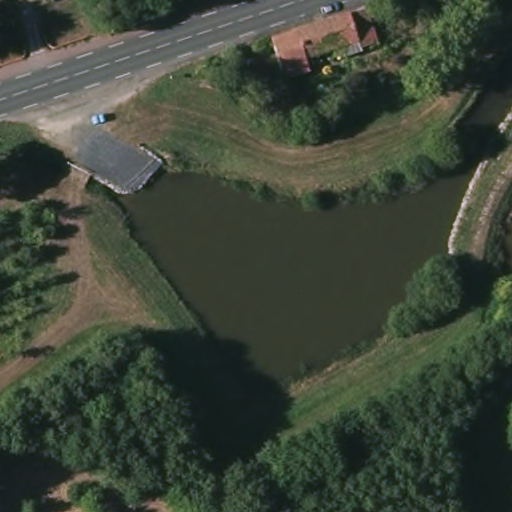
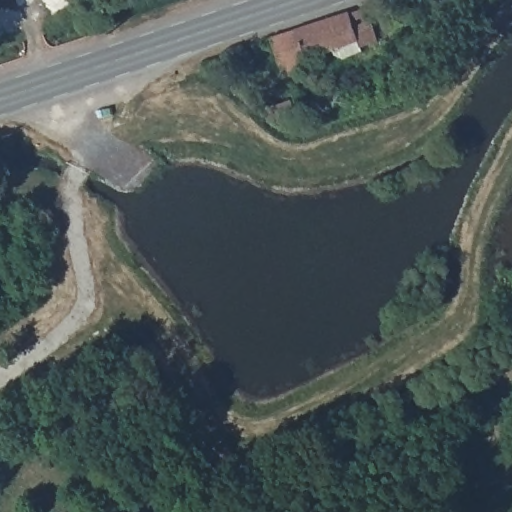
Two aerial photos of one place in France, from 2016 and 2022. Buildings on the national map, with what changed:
unchanged [(332,24),(349,17),(349,19),(366,14),(366,15),(367,16),(377,47),(361,53),(362,55),(341,62),(334,59),(333,54),(305,64),(309,75),(284,84),(272,46),(271,43),(295,35),(332,24)]
unchanged [(295,112),(316,105),(319,119),(287,129),(270,116),(269,115),(263,110),(291,101),(294,107),(295,112)]

